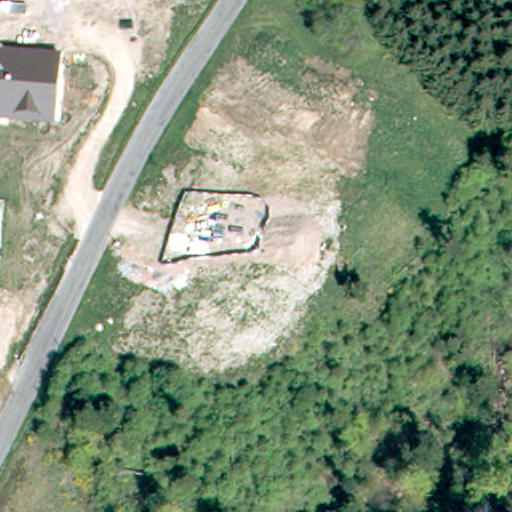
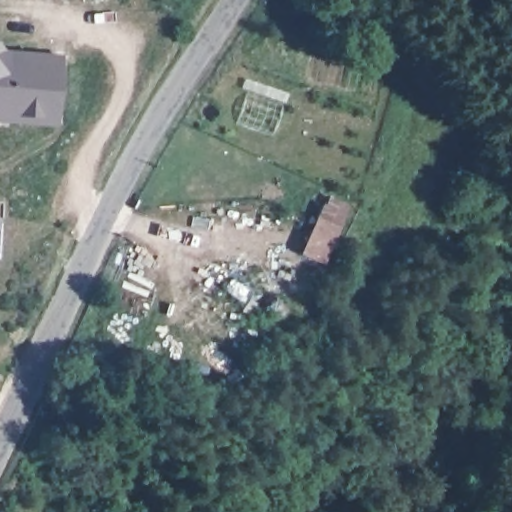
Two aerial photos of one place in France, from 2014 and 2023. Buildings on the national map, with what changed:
unchanged [(62,54),(56,126),(0,121),(0,45),(4,50),(62,54)]
new [(314,216),(327,196),(346,205),(336,224),(340,226),(323,262),(299,252),(314,216)]

